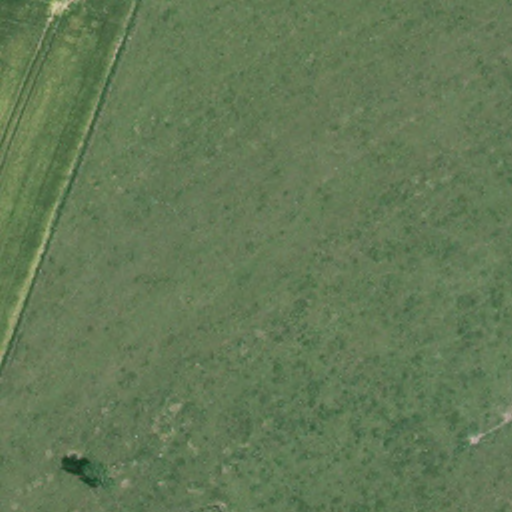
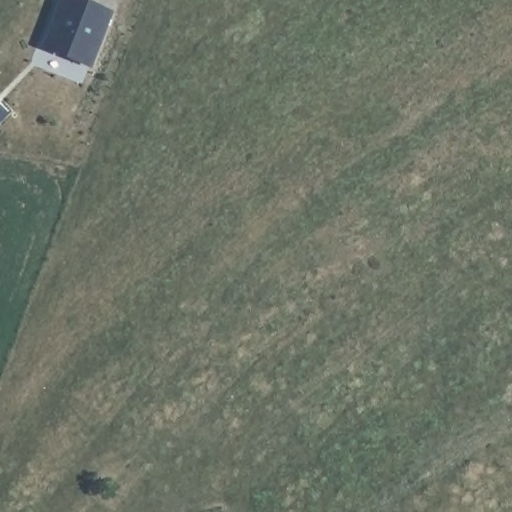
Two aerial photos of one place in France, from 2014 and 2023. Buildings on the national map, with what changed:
new [(113,12),(92,69),(41,49),(59,0),(75,0),(113,12)]

